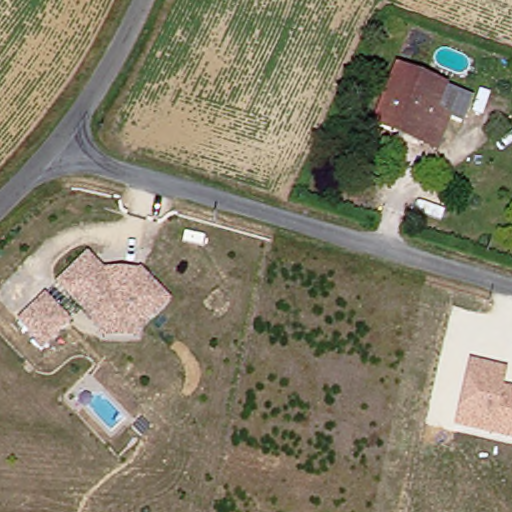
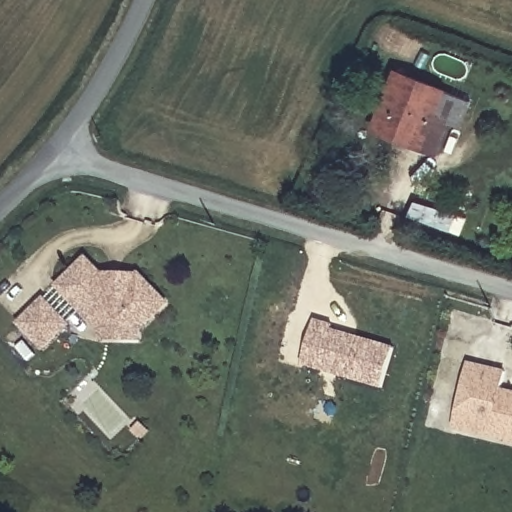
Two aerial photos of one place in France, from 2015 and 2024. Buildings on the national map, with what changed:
unchanged [(428,118),(442,125),(430,154),(369,128),(393,74),(439,94),(428,118)]
new [(442,125),(428,118),(439,94),(471,107),(463,126),(451,124),(438,156),(430,154),(442,125)]
unchanged [(499,112),(490,134),(476,127),(486,107),(499,112)]
unchanged [(129,341),(98,341),(99,331),(57,287),(85,260),(100,275),(138,276),(166,305),(138,331),(137,341),(129,341)]
unchanged [(66,326),(41,350),(18,325),(43,301),(66,326)]
new [(316,319),(333,325),(332,329),(395,348),(381,388),(303,365),(316,319)]
unchanged [(459,411),(470,362),(506,370),(502,388),(512,390),(512,439),(456,426),(459,411)]

